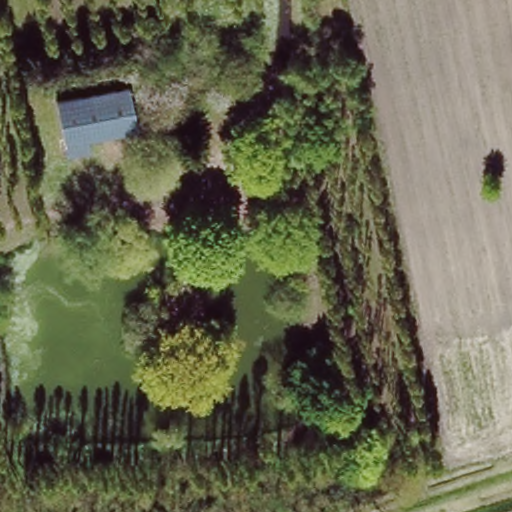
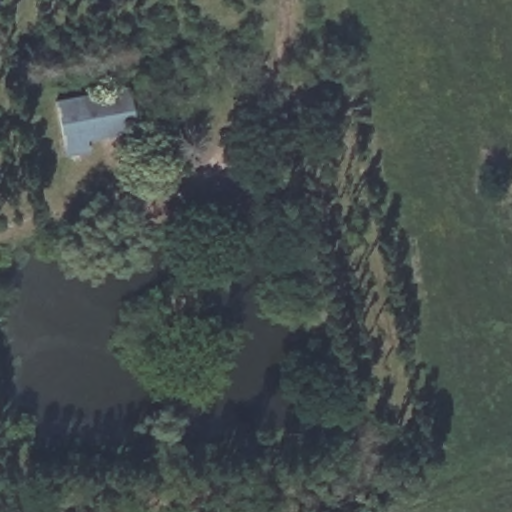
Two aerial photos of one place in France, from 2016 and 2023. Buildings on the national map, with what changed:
unchanged [(63,151),(61,142),(52,101),(125,85),(133,127),(83,137),(85,147),(63,151)]

